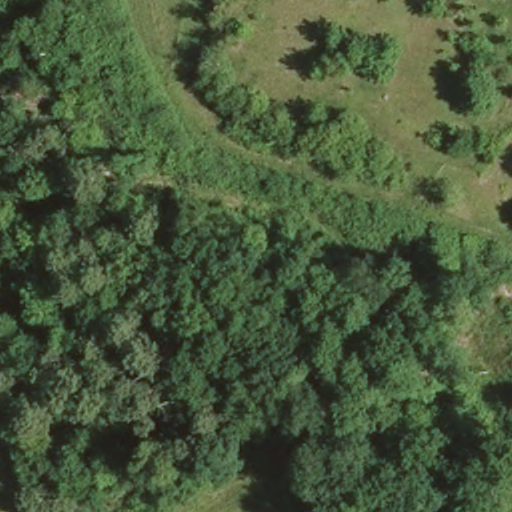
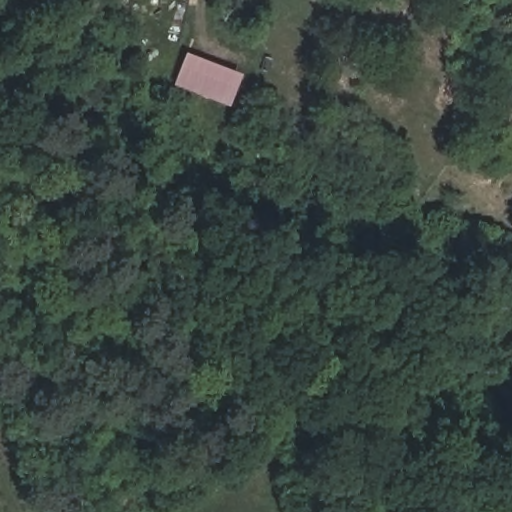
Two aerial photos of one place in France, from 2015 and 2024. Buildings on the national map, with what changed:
new [(173,85),(185,53),(240,74),(228,106),(173,85)]

